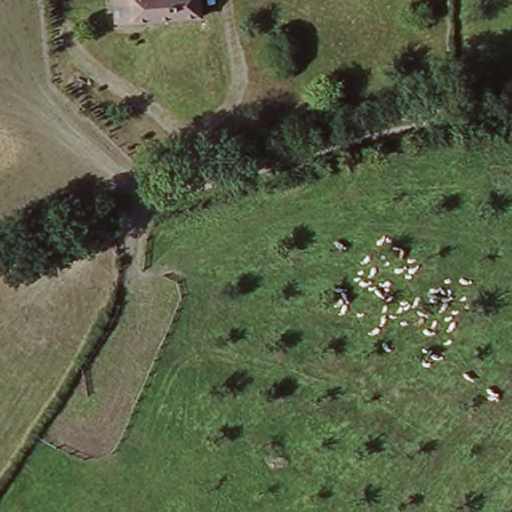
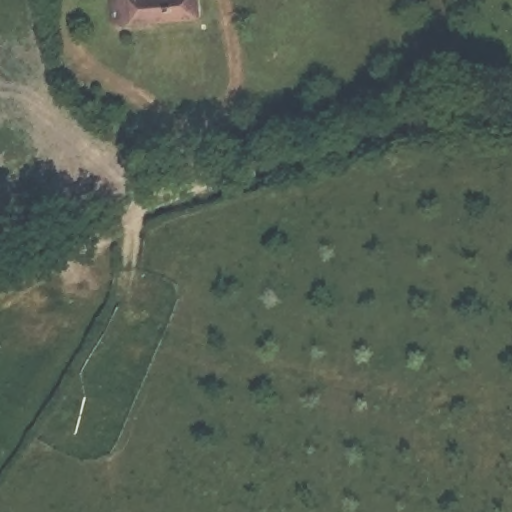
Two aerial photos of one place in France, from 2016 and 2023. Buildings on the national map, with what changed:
unchanged [(111,27),(109,0),(191,0),(193,23),(111,27)]

